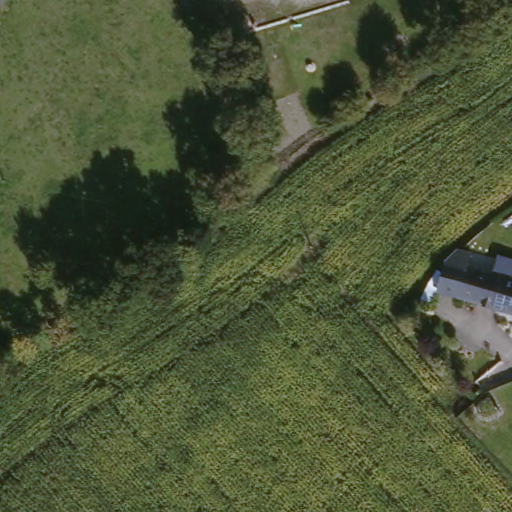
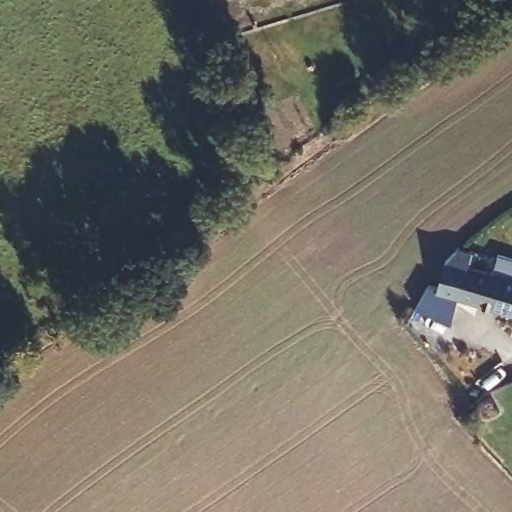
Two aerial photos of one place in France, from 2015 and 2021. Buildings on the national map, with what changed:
unchanged [(440,290),(451,255),(512,273),(512,311),(440,290)]

